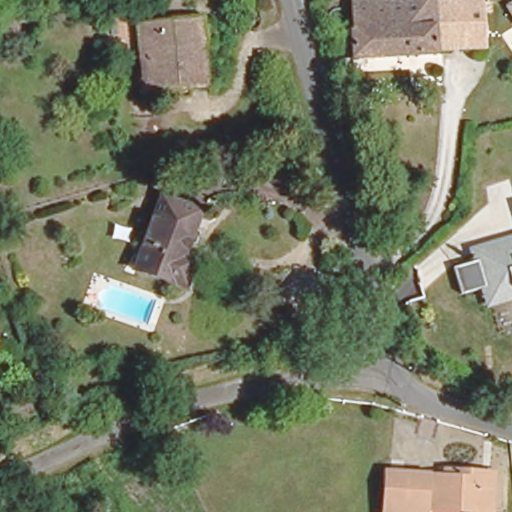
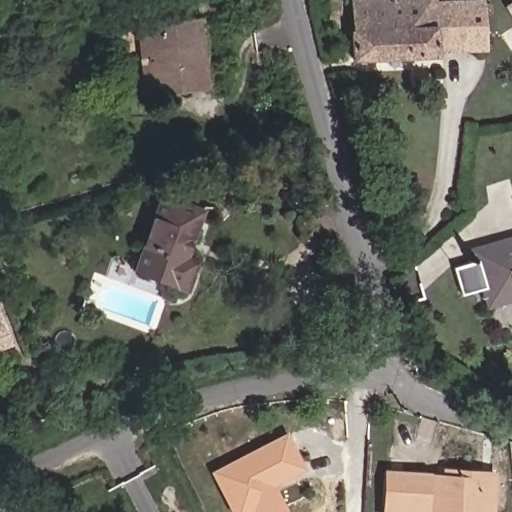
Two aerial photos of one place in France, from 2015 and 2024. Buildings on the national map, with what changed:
unchanged [(482,42),(434,44),(434,47),(351,50),(348,0),(480,0),(482,42)]
unchanged [(507,13),(512,10),(512,21),(507,13)]
unchanged [(192,80),(192,94),(139,92),(141,14),(179,16),(197,16),(195,67),(195,80),(192,80)]
unchanged [(193,201),(179,246),(192,252),(185,277),(132,260),(157,187),(193,201)]
unchanged [(488,298),(487,288),(476,291),(462,295),(456,267),(472,263),(480,261),(477,252),(512,244),(512,292),(488,298)]
new [(286,432),(303,468),(273,485),(287,512),(229,512),(209,472),(286,432)]
unchanged [(413,465),(433,466),(434,462),(490,465),(488,512),(469,512),(469,509),(432,507),(432,512),(388,512),(390,461),(413,462),(413,465)]

